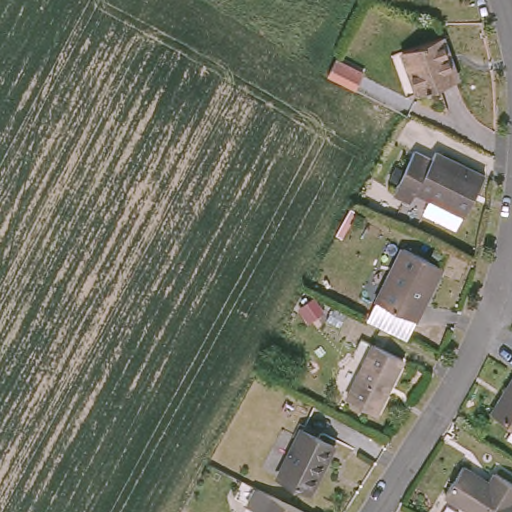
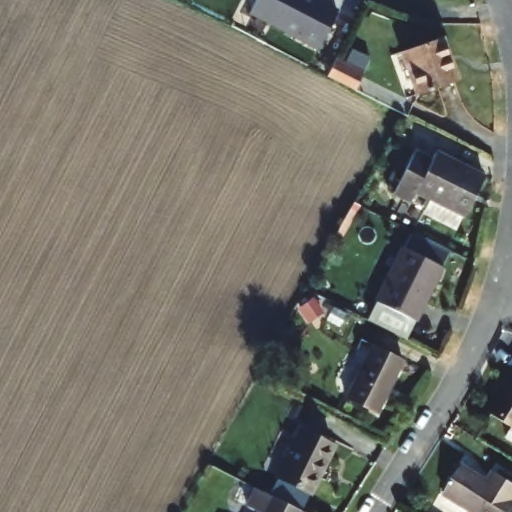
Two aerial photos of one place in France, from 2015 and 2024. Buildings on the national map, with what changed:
new [(255,0),(319,0),(337,10),(317,50),(248,14),(255,0)]
unchanged [(456,81),(419,93),(404,50),(441,37),(456,81)]
unchanged [(365,71),(357,89),(329,75),(337,57),(365,71)]
unchanged [(485,177),(471,206),(422,180),(417,191),(399,181),(419,141),(485,177)]
unchanged [(444,267),(417,321),(377,301),(404,248),(444,267)]
unchanged [(401,360),(375,412),(343,396),(370,345),(401,360)]
unchanged [(486,408),(502,383),(499,381),(512,360),(512,424),(486,408)]
unchanged [(329,441),(305,488),(273,471),(297,425),(329,441)]
unchanged [(495,478),(500,468),(512,476),(512,512),(485,512),(450,490),(467,462),(495,478)]
unchanged [(248,511),(257,493),(269,500),(294,512),(249,512),(248,511)]

